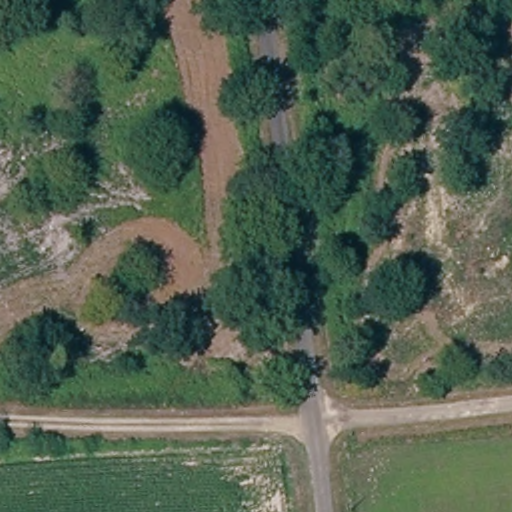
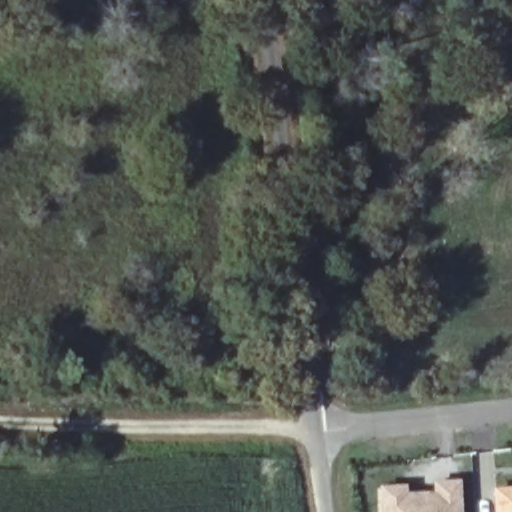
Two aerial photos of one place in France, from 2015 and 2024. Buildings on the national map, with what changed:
new [(407,491),(433,491),(432,482),(461,479),(462,512),(380,512),(379,486),(407,485),(407,491)]
new [(512,512),(495,512),(494,488),(512,487),(512,512)]

